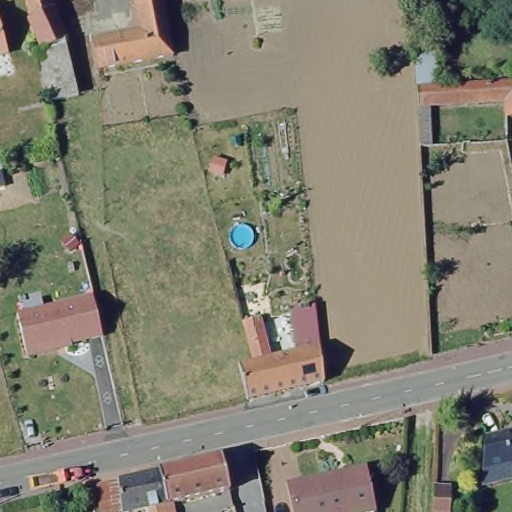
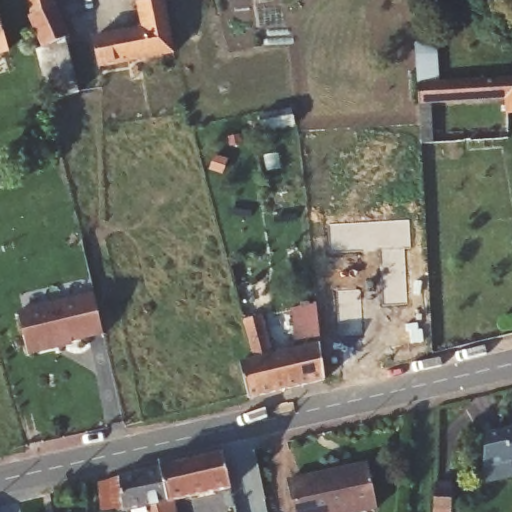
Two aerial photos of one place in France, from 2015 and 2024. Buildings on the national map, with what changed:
unchanged [(43,80),(36,54),(45,51),(28,9),(25,0),(55,0),(66,39),(68,44),(73,72),(80,101),(71,103),(50,109),(43,80)]
unchanged [(140,23),(136,0),(163,0),(169,45),(92,66),(85,39),(140,23)]
unchanged [(0,68),(0,32),(8,66),(0,68)]
unchanged [(505,112),(503,100),(432,104),(435,145),(420,146),(417,99),(417,84),(415,44),(435,43),(438,84),(512,81),(512,112),(505,112)]
unchanged [(95,293),(105,335),(74,342),(75,345),(27,355),(18,312),(95,293)]
unchanged [(253,360),(242,320),(263,315),(273,354),(295,348),(291,308),(317,302),(319,342),(325,381),(248,399),(241,363),(253,360)]
unchanged [(512,426),(512,477),(480,483),(483,431),(512,426)]
unchanged [(224,454),(231,487),(173,501),(167,502),(160,467),(224,454)]
unchanged [(377,465),(386,512),(356,512),(356,509),(342,512),(299,512),(292,481),(377,465)]
unchanged [(160,467),(167,502),(147,507),(127,512),(120,512),(116,476),(160,467)]
unchanged [(451,488),(450,512),(432,512),(433,486),(451,488)]
unchanged [(167,502),(173,501),(176,512),(148,512),(147,507),(167,502)]

